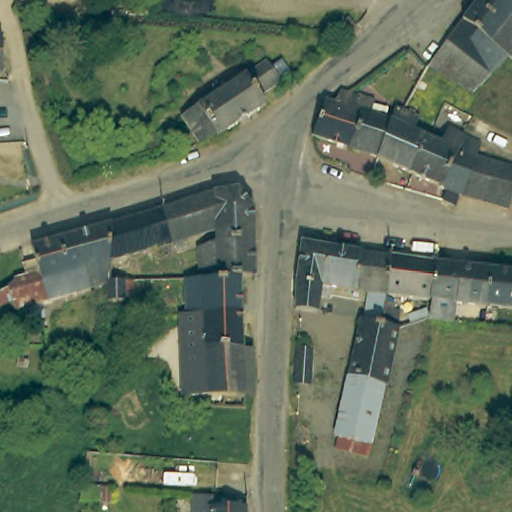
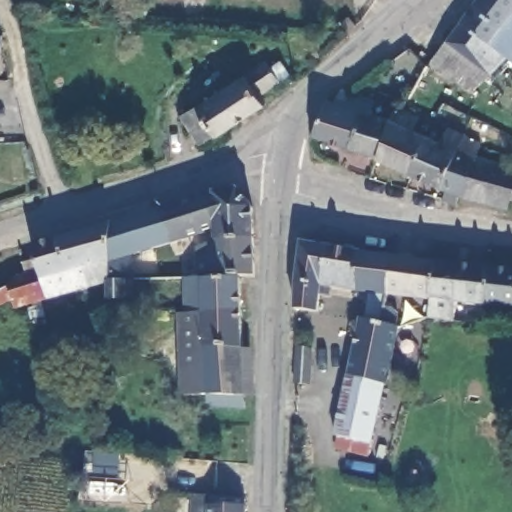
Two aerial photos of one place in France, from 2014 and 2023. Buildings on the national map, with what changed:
unchanged [(478,0),(512,0),(512,46),(467,15),(478,0)]
unchanged [(467,15),(512,46),(512,49),(497,68),(451,36),(467,15)]
unchanged [(6,37),(3,71),(0,70),(0,36),(6,37)]
unchanged [(436,61),(451,36),(497,68),(481,89),(436,61)]
unchanged [(268,58),(271,62),(278,57),(288,70),(289,71),(271,86),(278,96),(206,147),(184,116),(268,58)]
unchanged [(315,107),(331,112),(338,98),(373,113),(366,127),(358,124),(345,156),(311,143),(315,107)]
unchanged [(438,205),(442,193),(374,167),(387,134),(390,135),(396,119),(420,128),(416,137),(442,147),(449,135),(479,147),(474,159),(457,200),(452,211),(438,205)]
unchanged [(345,156),(358,124),(366,127),(387,134),(374,167),(345,156)]
unchanged [(474,159),(476,160),(512,171),(512,191),(508,204),(502,220),(457,200),(474,159)]
unchanged [(164,206),(235,184),(258,200),(258,231),(222,235),(221,226),(172,241),(164,206)]
unchanged [(512,191),(512,205),(508,204),(512,191)]
unchanged [(107,295),(107,276),(78,286),(65,235),(115,220),(164,206),(172,241),(137,250),(137,275),(129,275),(128,295),(107,295)]
unchanged [(198,258),(197,245),(223,242),(222,235),(258,231),(257,272),(245,272),(198,273),(198,258)]
unchanged [(36,300),(0,305),(0,285),(1,285),(0,283),(27,275),(25,262),(36,260),(34,245),(65,235),(78,286),(36,300)]
unchanged [(297,292),(304,235),(332,239),(324,283),(320,308),(296,305),(297,292)]
unchanged [(324,283),(332,239),(390,248),(383,291),(324,283)]
unchanged [(333,433),(363,315),(366,316),(369,303),(381,306),(383,291),(390,248),(437,255),(431,296),(399,292),(394,321),(400,321),(384,402),(379,401),(369,443),(366,456),(338,448),(341,436),(333,433)]
unchanged [(460,300),(457,320),(428,315),(431,296),(437,255),(496,264),(490,303),(460,300)]
unchanged [(512,307),(490,303),(496,264),(512,266),(512,307)]
unchanged [(246,307),(187,310),(185,273),(198,273),(245,272),(246,307)]
unchanged [(250,390),(190,396),(187,310),(246,307),(250,390)]
unchanged [(295,335),(312,335),(310,372),(294,372),(295,335)]
unchanged [(77,502),(79,480),(114,482),(113,504),(77,502)]
unchanged [(253,503),(252,512),(194,512),(196,499),(253,503)]

